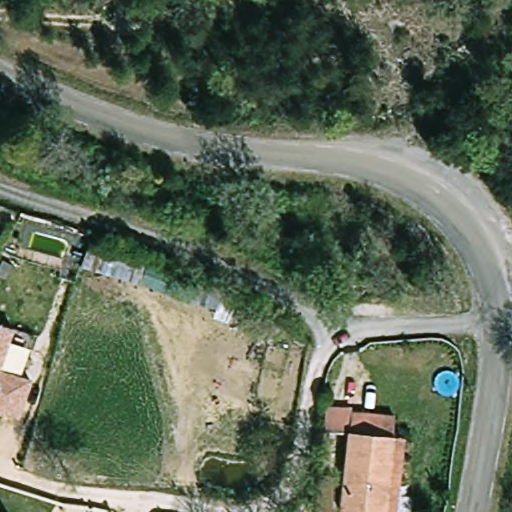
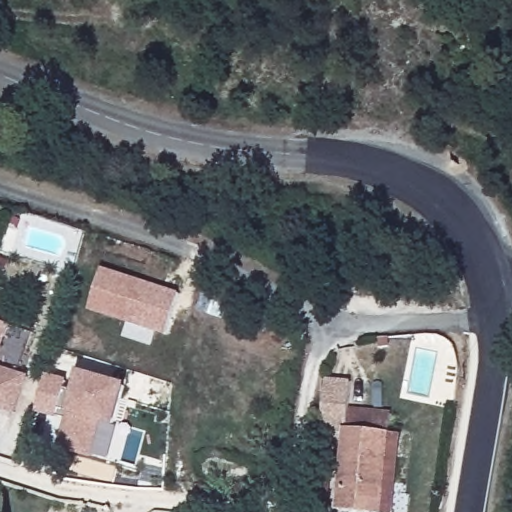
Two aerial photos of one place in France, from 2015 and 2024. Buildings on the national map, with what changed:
demolished [(59,230),(146,258),(139,279),(53,253),(59,230)]
new [(180,292),(166,334),(88,309),(102,267),(180,292)]
unchanged [(0,354),(0,320),(10,323),(0,354)]
unchanged [(18,411),(0,406),(0,367),(29,376),(18,411)]
new [(65,388),(75,389),(80,370),(128,385),(114,426),(101,422),(93,452),(58,442),(65,417),(57,414),(56,418),(35,411),(46,373),(68,379),(65,388)]
unchanged [(380,512),(363,512),(337,509),(345,435),(319,432),(321,405),(348,408),(391,413),(389,432),(380,512)]
unchanged [(401,433),(392,512),(380,512),(389,432),(401,433)]

